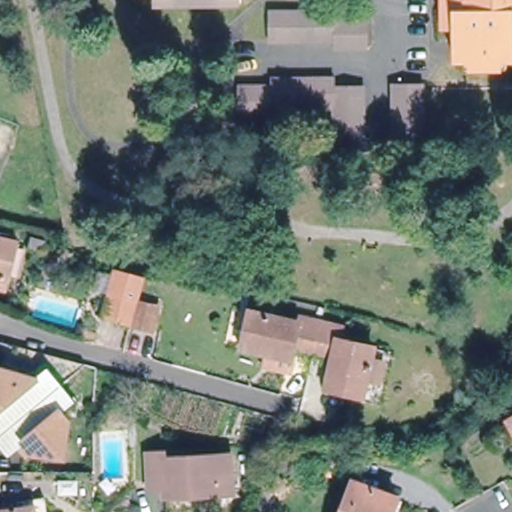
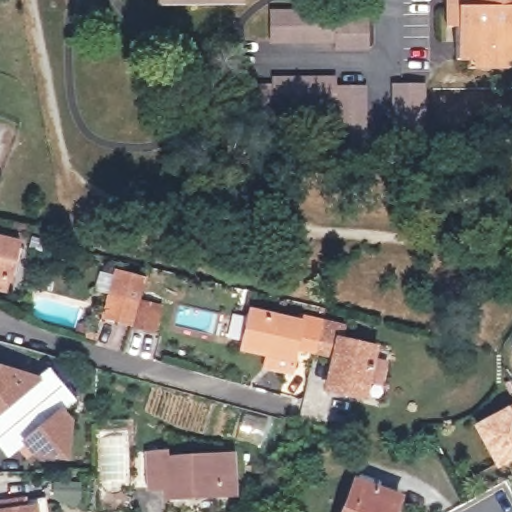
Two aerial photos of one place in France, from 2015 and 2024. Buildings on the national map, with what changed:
unchanged [(512,0),(512,59),(508,59),(507,65),(475,64),(474,58),(460,57),(460,29),(449,28),(449,0),(512,0)]
unchanged [(319,7),(333,8),(333,14),(363,15),(362,47),(331,47),(332,37),(271,38),(273,7),(319,7)]
unchanged [(334,111),(274,110),(274,117),(240,117),(241,85),(275,85),(275,74),(335,73),(335,81),(364,81),(364,137),(334,137),(334,111)]
unchanged [(393,153),(393,142),(395,82),(422,82),(422,141),(420,152),(393,153)]
unchanged [(359,140),(358,151),(329,151),(329,140),(359,140)]
unchanged [(0,286),(0,234),(20,239),(11,276),(9,288),(0,286)]
unchanged [(154,333),(100,318),(109,291),(114,276),(146,283),(141,301),(161,307),(154,333)]
unchanged [(380,388),(363,386),(360,400),(326,393),(333,361),(293,352),(290,362),(294,363),(290,378),(275,375),(261,371),(264,358),(242,354),(252,320),(297,331),(299,326),(340,335),(338,347),(370,353),(368,360),(385,364),(380,388)]
unchanged [(29,377),(44,366),(56,382),(0,428),(0,368),(29,377)]
unchanged [(70,400),(55,411),(61,418),(59,452),(30,452),(29,448),(21,454),(15,445),(3,454),(0,451),(0,428),(56,382),(70,400)]
new [(473,423),(508,405),(512,403),(512,460),(496,467),(473,423)]
demolished [(512,420),(512,423),(511,421),(512,420)]
unchanged [(219,490),(172,495),(172,490),(156,491),(152,448),(166,447),(167,452),(231,446),(233,471),(235,487),(219,490)]
unchanged [(387,491),(381,512),(345,512),(354,480),(387,491)]
unchanged [(18,500),(40,497),(42,512),(18,512),(18,500)]

